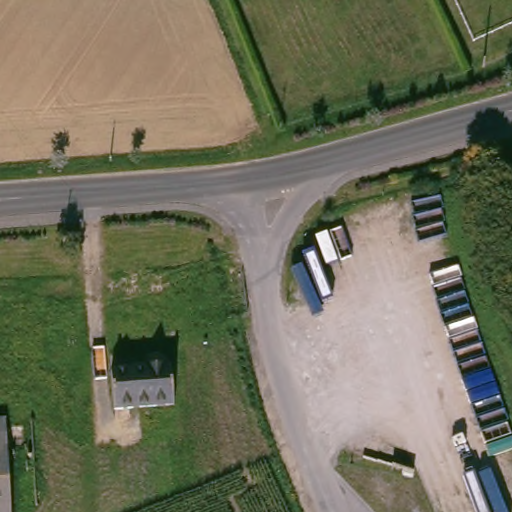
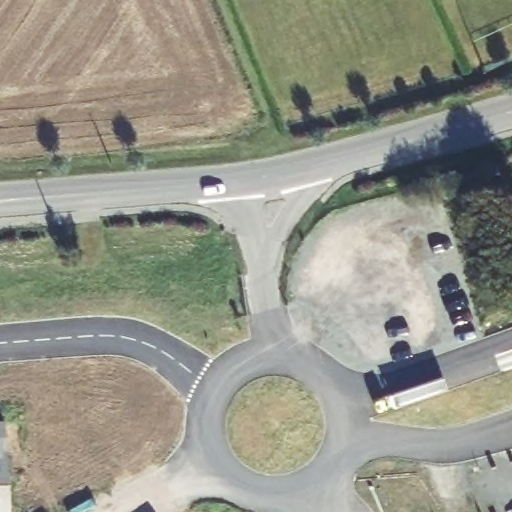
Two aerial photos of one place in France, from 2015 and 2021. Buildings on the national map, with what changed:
demolished [(118,371),(148,370),(151,362),(153,360),(155,359),(158,358),(164,359),(167,361),(171,370),(177,370),(178,405),(119,406),(118,371)]
unchanged [(13,423),(14,512),(0,512),(0,423),(13,423)]

